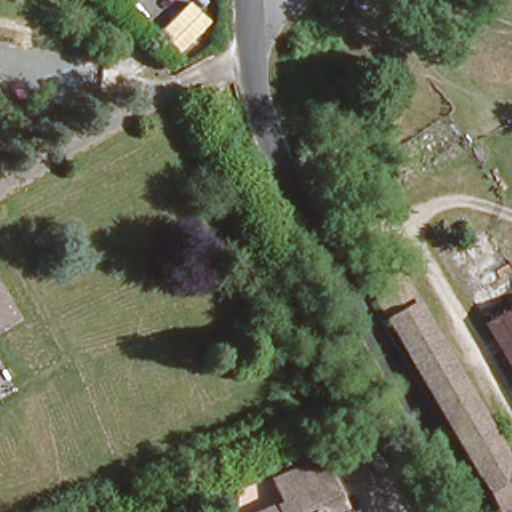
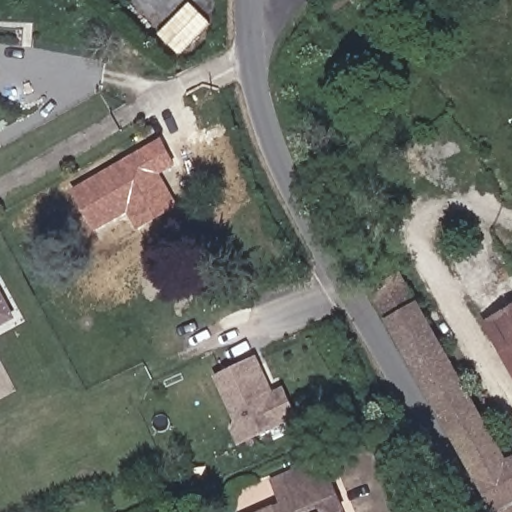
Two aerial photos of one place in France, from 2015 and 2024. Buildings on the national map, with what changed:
unchanged [(148,24),(169,0),(197,0),(214,15),(182,52),(148,24)]
unchanged [(338,12),(333,0),(362,0),(363,1),(338,12)]
new [(175,165),(162,172),(179,202),(137,227),(128,212),(92,230),(71,190),(161,137),(175,165)]
unchanged [(437,415),(366,285),(390,272),(461,401),(437,415)]
unchanged [(0,317),(0,290),(12,311),(0,317)]
unchanged [(485,322),(512,305),(512,369),(485,322)]
new [(240,447),(233,431),(235,418),(214,376),(260,355),(276,390),(285,386),(299,417),(240,447)]
unchanged [(468,472),(437,415),(461,401),(493,458),(468,472)]
unchanged [(489,502),(481,497),(470,476),(468,472),(493,458),(497,457),(499,455),(505,452),(506,451),(512,447),(512,512),(492,512),(489,502)]
unchanged [(285,495),(276,473),(323,452),(350,512),(246,512),(285,495)]

